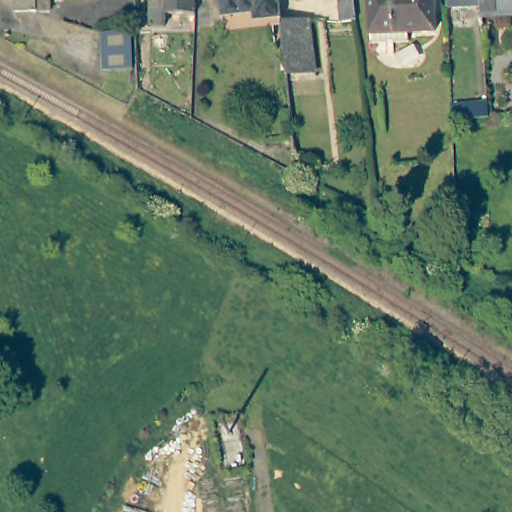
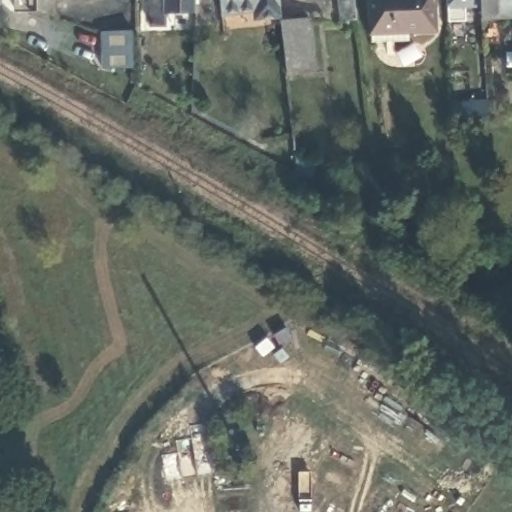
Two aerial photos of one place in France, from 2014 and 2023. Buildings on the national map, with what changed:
unchanged [(54,10),(19,12),(17,0),(53,0),(54,10)]
unchanged [(197,11),(169,11),(169,25),(152,24),(153,2),(166,2),(165,0),(197,0),(197,11)]
unchanged [(222,31),(220,16),(218,0),(278,0),(279,17),(280,26),(222,31)]
unchanged [(342,19),(340,0),(355,0),(357,17),(342,19)]
unchanged [(367,0),(430,0),(431,31),(368,32),(367,0)]
unchanged [(482,4),(448,6),(448,0),(482,0),(482,4)]
unchanged [(483,12),(482,4),(482,0),(512,0),(512,12),(483,12)]
unchanged [(312,72),(286,75),(284,74),(283,69),(281,26),(280,24),(282,24),(308,22),(312,72)]
unchanged [(134,29),(135,66),(105,66),(104,29),(134,29)]
unchanged [(227,132),(219,127),(221,124),(230,129),(227,132)]

